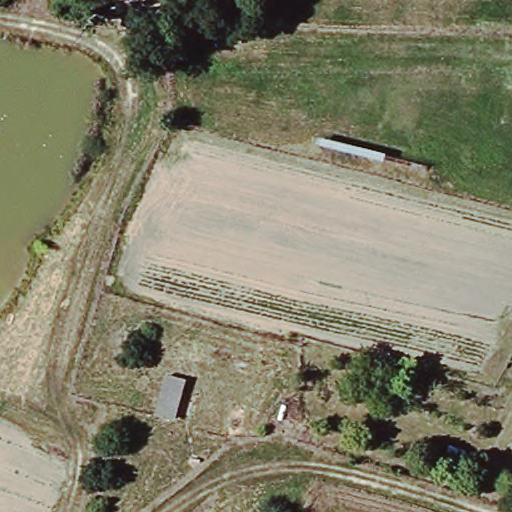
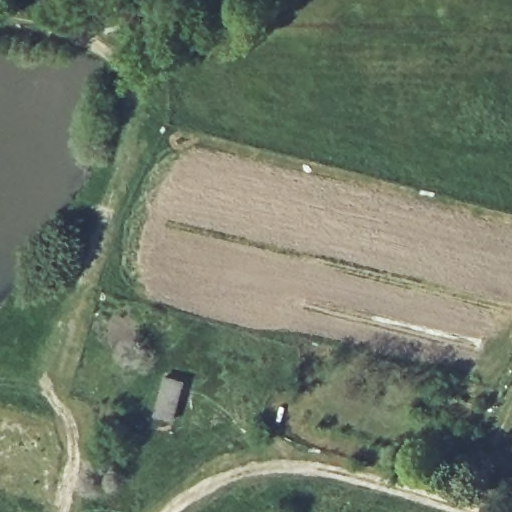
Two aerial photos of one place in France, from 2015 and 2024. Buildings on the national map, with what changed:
[]

